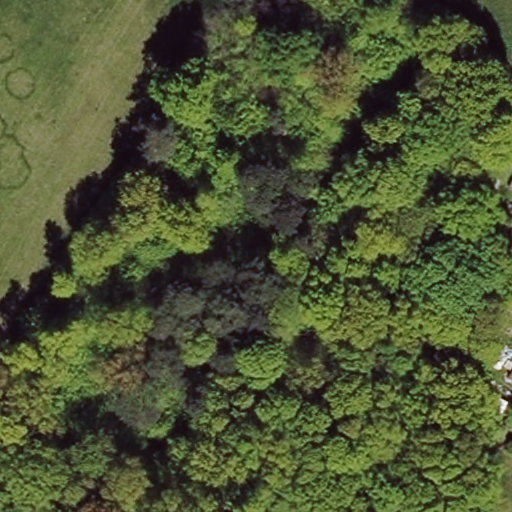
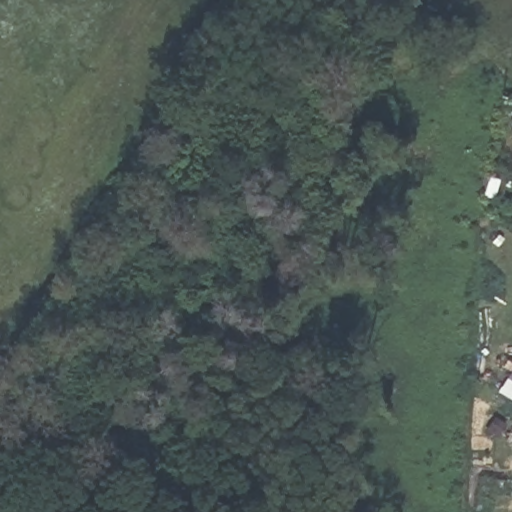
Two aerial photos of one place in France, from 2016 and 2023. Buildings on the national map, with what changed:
unchanged [(512,170),(512,189),(498,180),(507,166),(512,170)]
unchanged [(504,378),(512,368),(512,384),(504,378)]
unchanged [(506,442),(512,434),(512,446),(506,442)]

